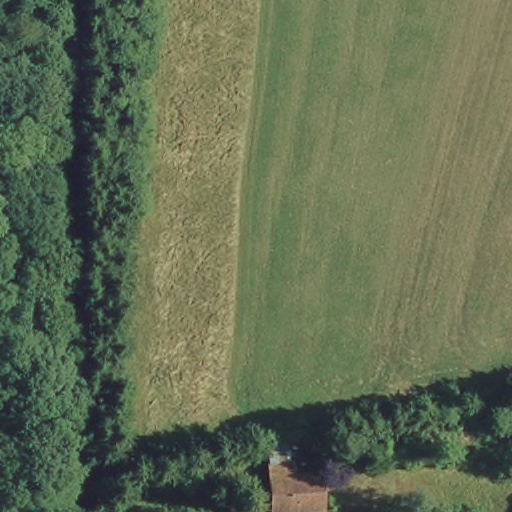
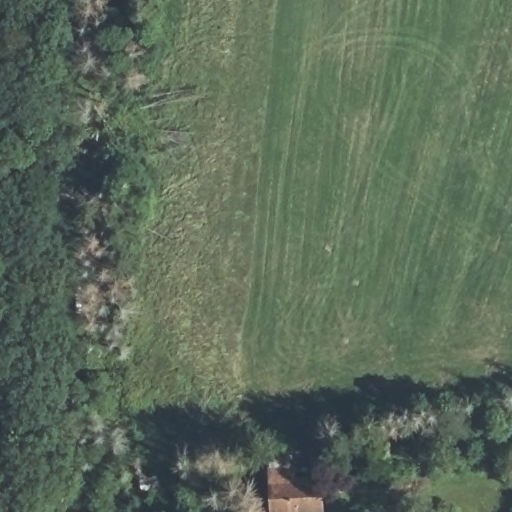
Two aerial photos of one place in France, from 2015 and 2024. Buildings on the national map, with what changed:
unchanged [(267,446),(313,437),(315,460),(296,462),(296,474),(325,475),(328,512),(270,512),(267,446)]

